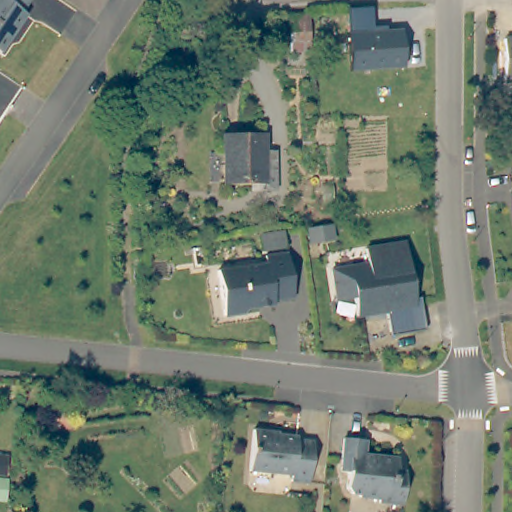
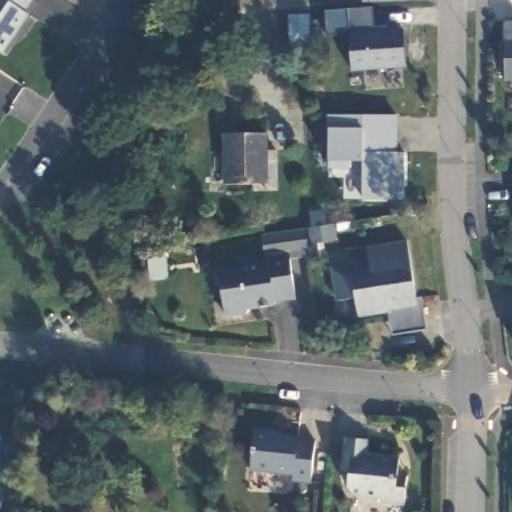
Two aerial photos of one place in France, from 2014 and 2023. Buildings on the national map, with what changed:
unchanged [(31,0),(24,11),(28,14),(14,34),(2,53),(0,52),(0,0),(31,0)]
unchanged [(373,8),(374,26),(386,26),(386,31),(403,30),(405,69),(352,73),(350,35),(349,10),(373,8)]
unchanged [(308,15),(310,50),(290,51),(288,16),(308,15)]
new [(510,40),(507,40),(507,20),(512,19),(512,81),(510,81),(510,40)]
demolished [(503,44),(512,44),(512,85),(502,85),(503,44)]
new [(405,200),(362,200),(363,161),(328,161),(328,129),(327,115),(398,116),(398,153),(404,153),(405,200)]
unchanged [(277,191),(255,191),(255,185),(226,185),(225,134),(267,134),(267,151),(277,151),(277,191)]
unchanged [(425,334),(390,339),(386,314),(385,308),(378,309),(379,313),(356,316),(354,298),(336,300),(332,269),(369,264),(367,249),(407,243),(415,302),(420,301),(425,334)]
unchanged [(275,302),(275,306),(250,309),(246,314),(225,317),(219,271),(267,264),(266,257),(288,254),(295,299),(275,302)]
unchanged [(270,432),(270,435),(297,438),(297,440),(313,442),(308,484),(291,483),(291,477),(249,472),(253,430),(270,432)]
unchanged [(365,442),(365,455),(397,460),(396,477),(405,478),(403,506),(378,504),(378,501),(358,498),(357,495),(350,494),(346,488),(347,473),(341,473),(344,439),(365,442)]

